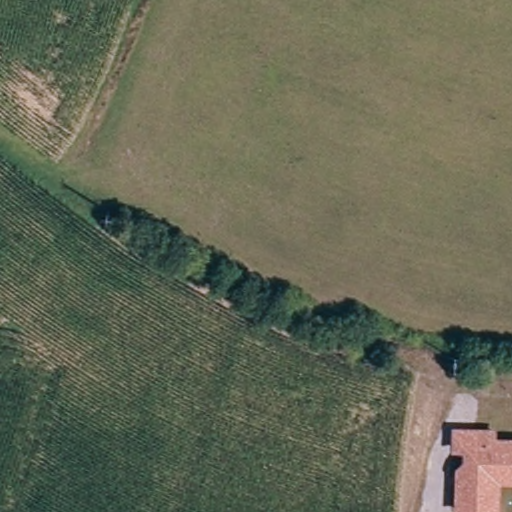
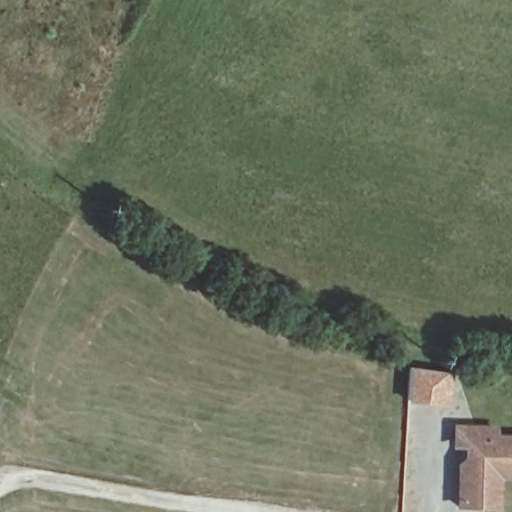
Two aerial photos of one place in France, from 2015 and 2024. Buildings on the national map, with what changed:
new [(411,368),(453,374),(450,409),(407,405),(411,368)]
unchanged [(460,507),(462,479),(468,479),(470,445),(458,445),(459,430),(486,430),(496,431),(496,439),(512,439),(512,478),(500,478),(499,488),(498,509),(482,508),(460,507)]

